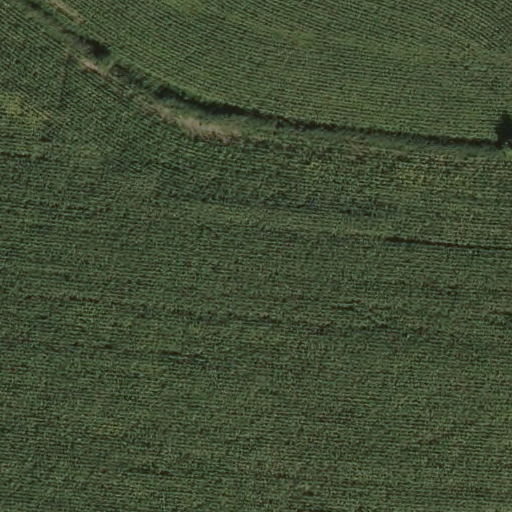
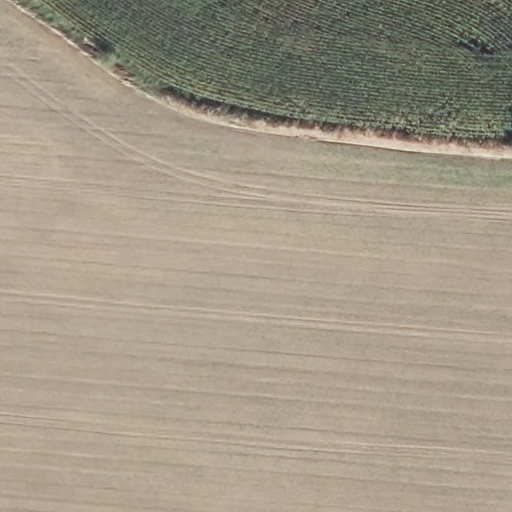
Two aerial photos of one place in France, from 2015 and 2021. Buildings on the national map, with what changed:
[]

